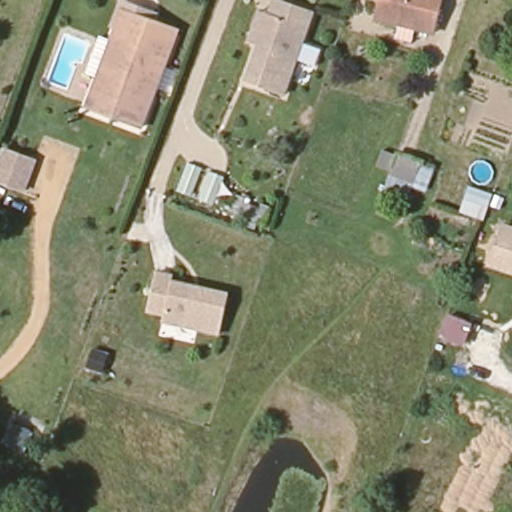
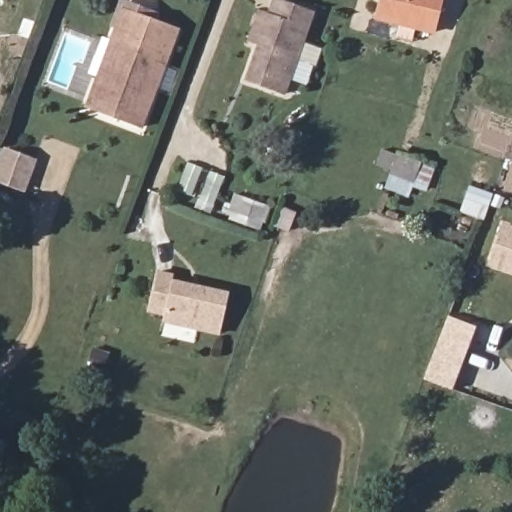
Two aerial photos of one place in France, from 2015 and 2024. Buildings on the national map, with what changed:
unchanged [(244,80),(256,46),(247,44),(257,9),(267,13),(271,0),(279,0),(313,13),(286,94),(244,80)]
unchanged [(381,14),(385,0),(441,0),(433,29),(381,14)]
unchanged [(114,40),(125,9),(176,29),(141,128),(99,111),(89,108),(114,40)]
unchanged [(30,193),(0,183),(0,158),(5,146),(39,158),(30,193)]
unchanged [(419,164),(434,169),(428,191),(414,187),(411,196),(384,187),(391,169),(377,165),(382,149),(396,154),(398,149),(422,158),(419,164)]
unchanged [(213,204),(178,192),(190,161),(224,174),(213,204)]
unchanged [(486,223),(462,212),(471,184),(496,194),(486,223)]
unchanged [(501,224),(512,228),(512,274),(487,266),(501,224)]
unchanged [(230,291),(218,333),(163,325),(164,317),(147,313),(157,268),(175,271),(173,279),(230,291)]
new [(454,390),(425,379),(448,316),(477,326),(454,390)]
unchanged [(110,352),(104,369),(90,364),(96,348),(110,352)]

